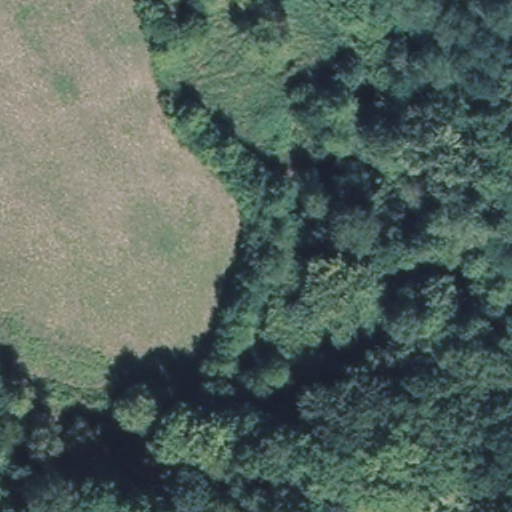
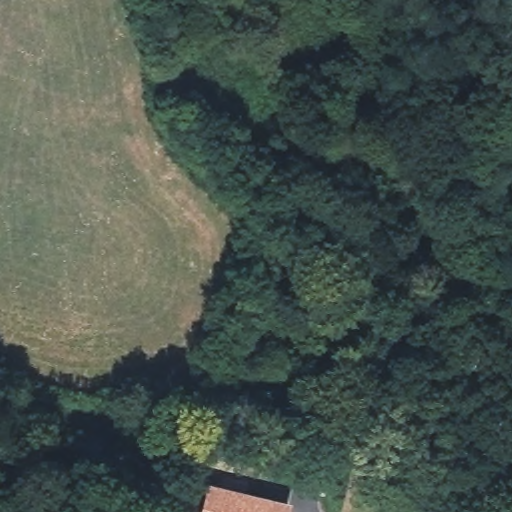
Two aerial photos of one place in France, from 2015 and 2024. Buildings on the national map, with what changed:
new [(214,488),(289,507),(288,512),(208,512),(214,488)]

